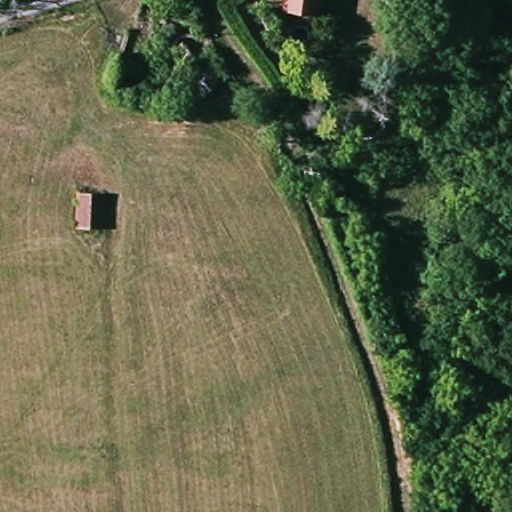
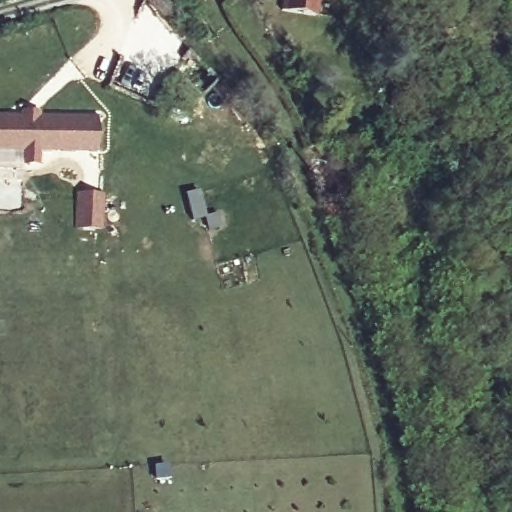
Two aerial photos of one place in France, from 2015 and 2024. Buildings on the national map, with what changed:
unchanged [(282,11),(284,0),(318,0),(317,14),(282,11)]
new [(22,166),(22,151),(0,151),(0,116),(21,116),(21,111),(39,111),(39,116),(96,116),(95,152),(39,152),(39,165),(22,166)]
unchanged [(107,194),(107,227),(80,228),(80,192),(107,194)]

